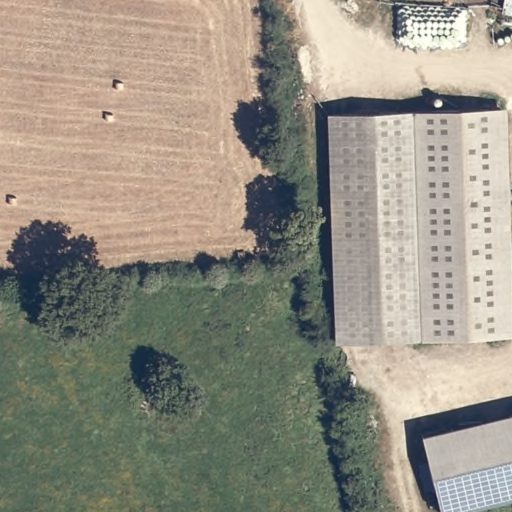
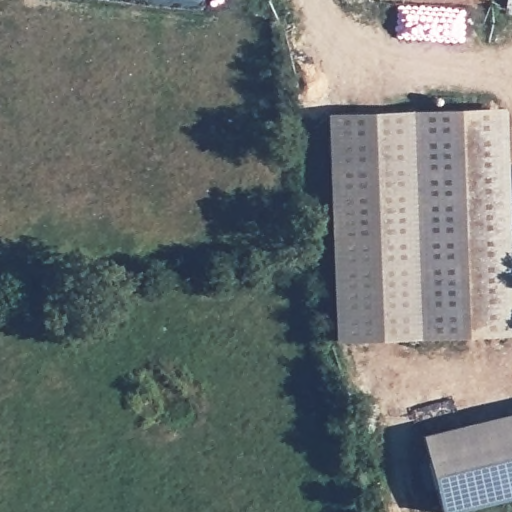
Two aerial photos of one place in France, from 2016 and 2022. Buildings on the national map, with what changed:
unchanged [(507,108),(512,277),(512,338),(418,340),(411,140),(394,140),(393,112),(507,108)]
unchanged [(325,114),(393,112),(394,140),(411,140),(418,340),(334,342),(325,114)]
unchanged [(437,512),(435,512),(418,434),(512,413),(512,496),(437,512)]

